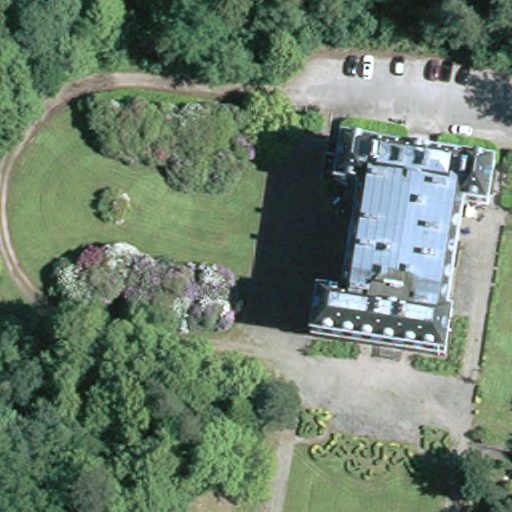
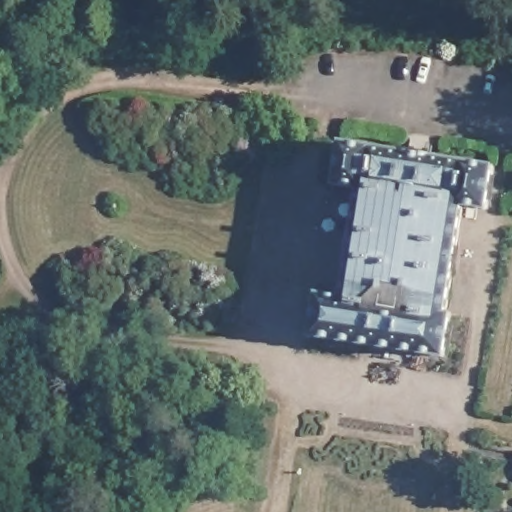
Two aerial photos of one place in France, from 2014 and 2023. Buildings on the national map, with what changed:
unchanged [(459,201),(440,309),(447,310),(440,350),(308,329),(315,288),(339,292),(358,184),(332,180),(319,177),(323,150),(337,153),(340,138),(370,143),(490,163),(482,204),(459,201)]

